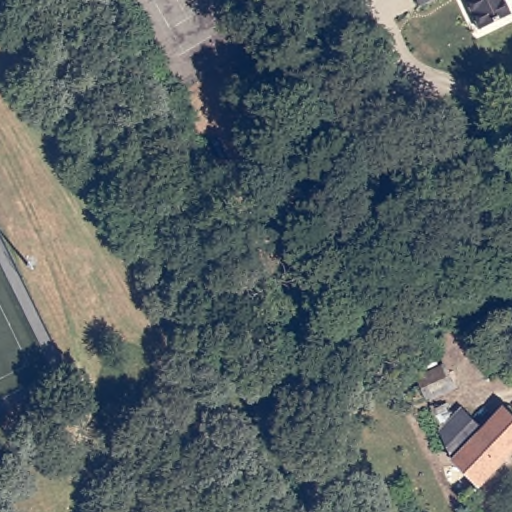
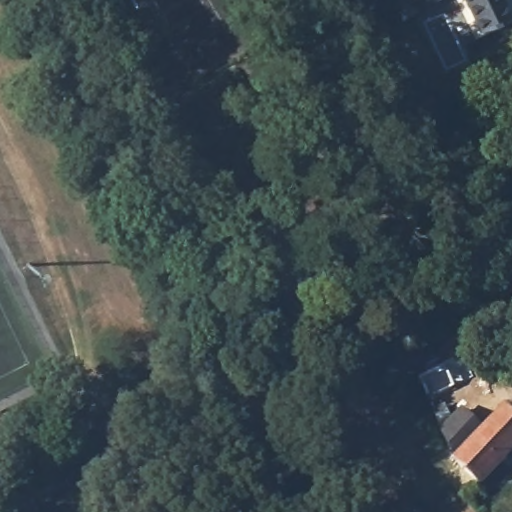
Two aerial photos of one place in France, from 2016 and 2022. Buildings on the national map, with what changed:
unchanged [(415,0),(438,0),(420,9),(415,0)]
unchanged [(479,34),(463,0),(499,0),(508,19),(479,34)]
unchanged [(444,365),(454,386),(428,399),(417,378),(444,365)]
unchanged [(489,438),(510,416),(512,417),(512,461),(482,493),(460,470),(452,455),(447,438),(438,420),(451,412),(458,424),(466,416),(489,438)]

